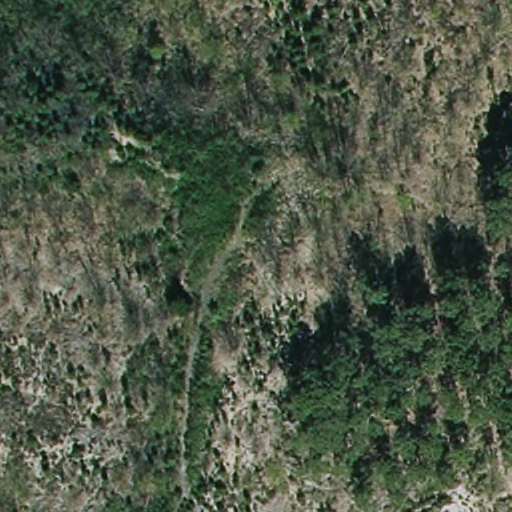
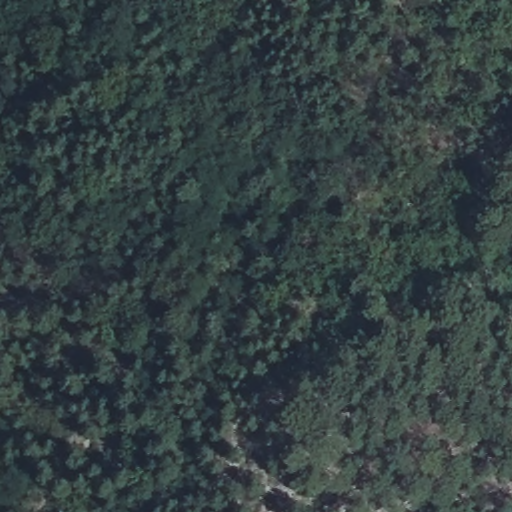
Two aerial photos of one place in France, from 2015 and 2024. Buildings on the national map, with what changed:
[]

